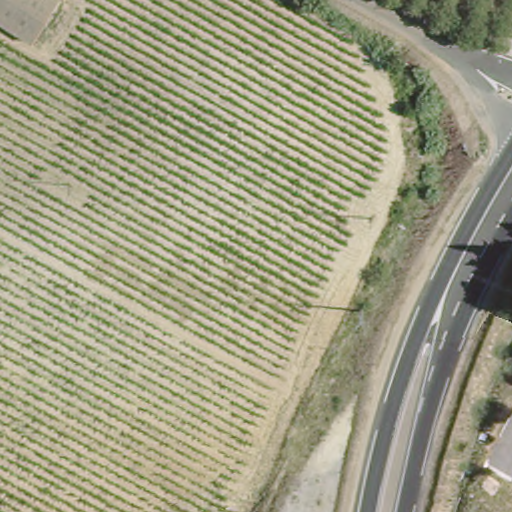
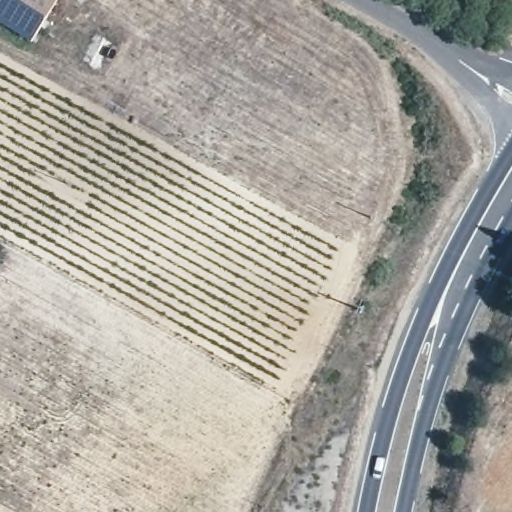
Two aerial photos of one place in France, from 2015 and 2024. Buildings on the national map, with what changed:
unchanged [(0,17),(0,0),(44,0),(51,5),(32,37),(0,17)]
unchanged [(512,425),(512,482),(487,468),(512,425)]

